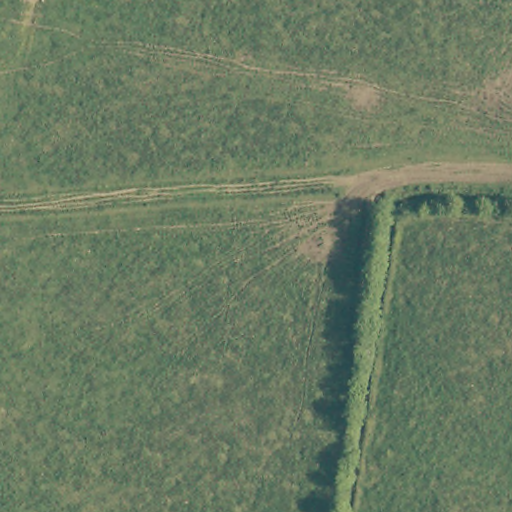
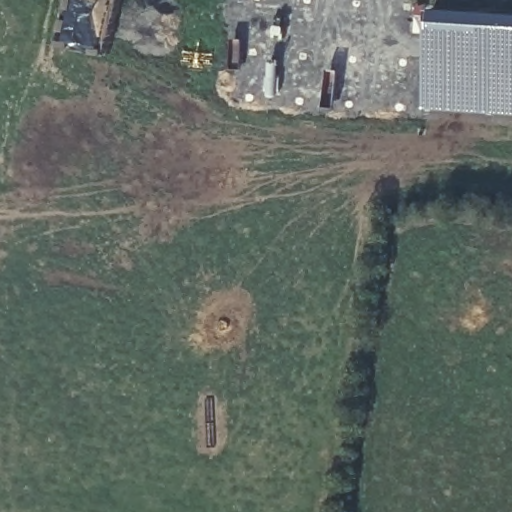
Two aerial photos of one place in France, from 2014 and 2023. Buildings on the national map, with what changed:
new [(432,5),(512,10),(512,110),(426,104),(432,5)]

